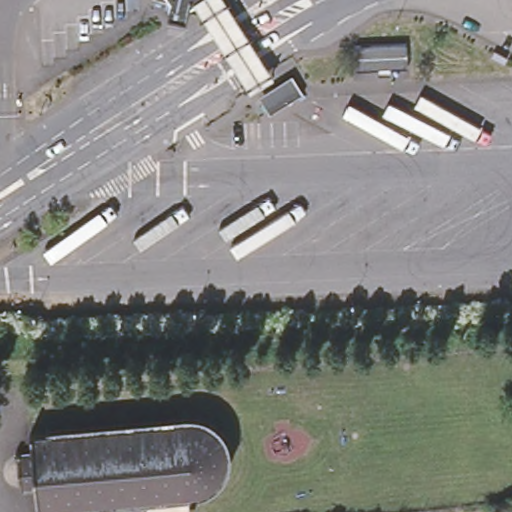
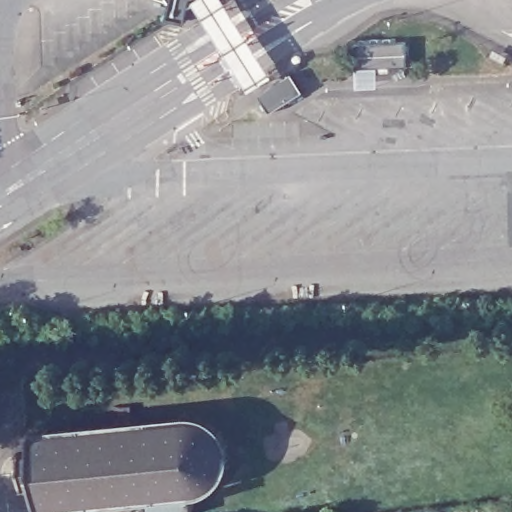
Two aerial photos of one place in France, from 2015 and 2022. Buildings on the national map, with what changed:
unchanged [(190,13),(189,25),(169,22),(171,8),(172,2),(167,2),(166,0),(210,0),(201,6),(200,14),(190,13)]
unchanged [(200,419),(207,421),(212,423),(219,428),(222,432),(226,437),(228,441),(230,445),(230,451),(231,457),(230,462),(229,467),(227,472),(225,477),(222,480),(218,484),(215,487),(210,489),(207,491),(202,492),(195,493),(197,504),(200,505),(200,507),(197,509),(197,512),(150,512),(149,507),(132,509),(131,501),(125,501),(123,505),(110,506),(107,503),(103,504),(100,507),(89,508),(85,506),(82,506),(80,509),(62,511),(63,512),(42,512),(40,489),(23,490),(20,457),(36,456),(34,430),(194,419),(200,419)]

